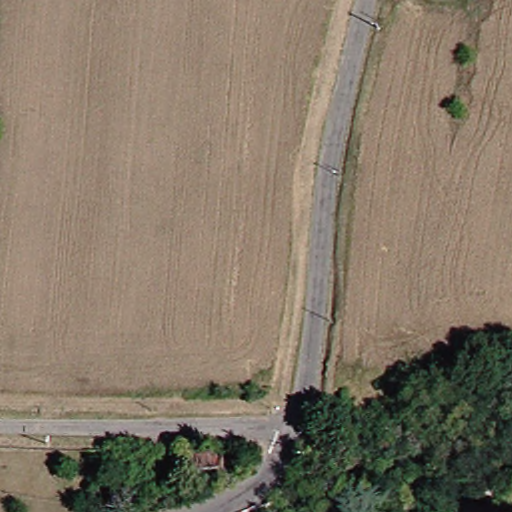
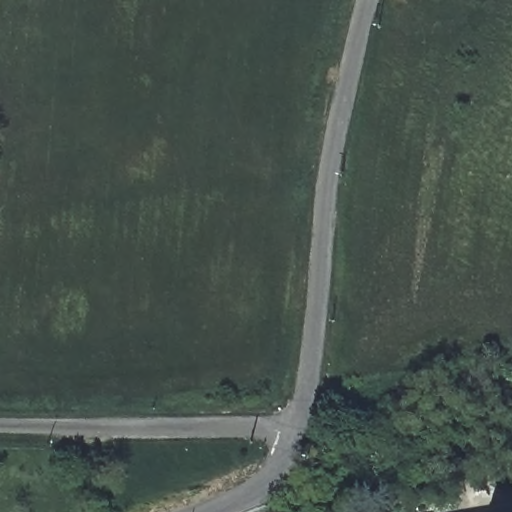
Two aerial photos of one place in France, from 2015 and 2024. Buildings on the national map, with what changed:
unchanged [(222,454),(222,469),(191,470),(190,455),(222,454)]

